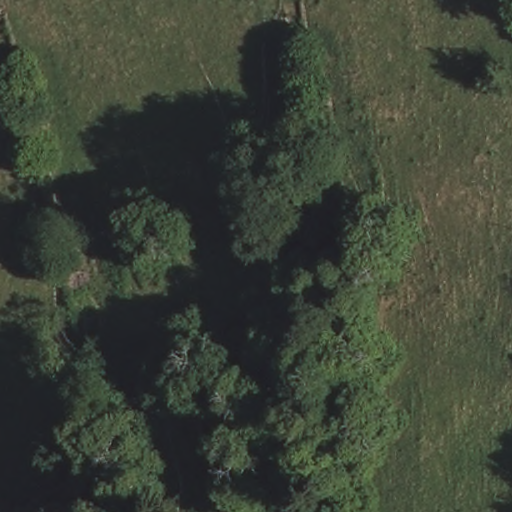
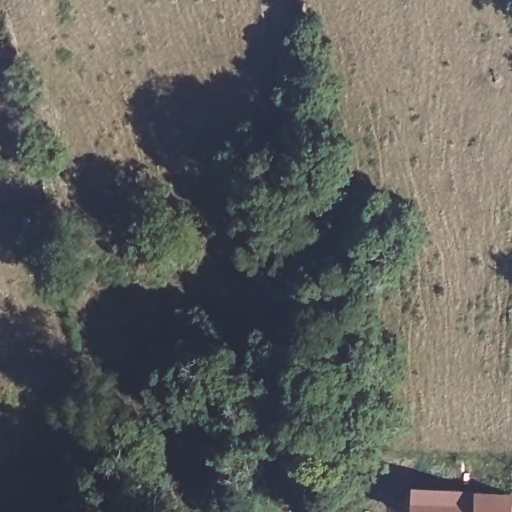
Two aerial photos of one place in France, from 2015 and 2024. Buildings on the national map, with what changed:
new [(511,497),(509,512),(406,512),(410,485),(511,497)]

